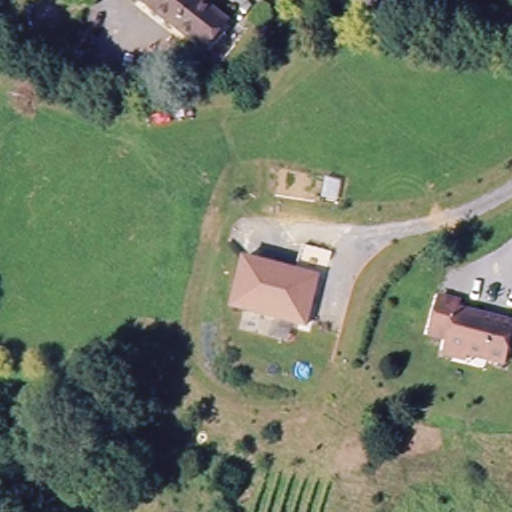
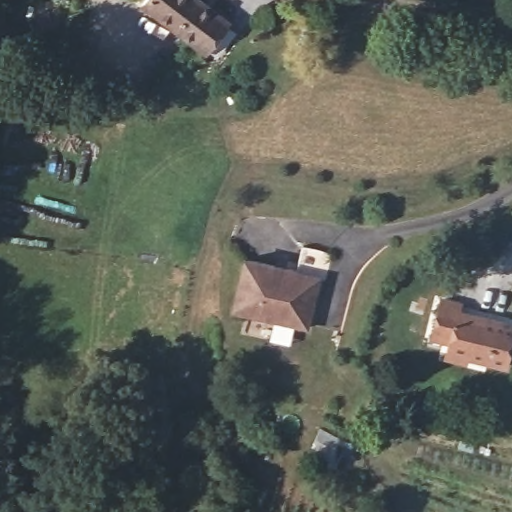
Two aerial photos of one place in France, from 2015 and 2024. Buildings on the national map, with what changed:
unchanged [(191,37),(147,4),(150,0),(201,0),(213,9),(229,22),(207,49),(191,37)]
unchanged [(253,312),(232,305),(248,256),(260,260),(299,273),(307,248),(329,255),(321,280),(305,329),(253,312)]
unchanged [(447,362),(451,349),(453,344),(432,337),(443,300),(465,308),(463,314),(512,330),(512,349),(506,371),(471,360),(468,369),(447,362)]

